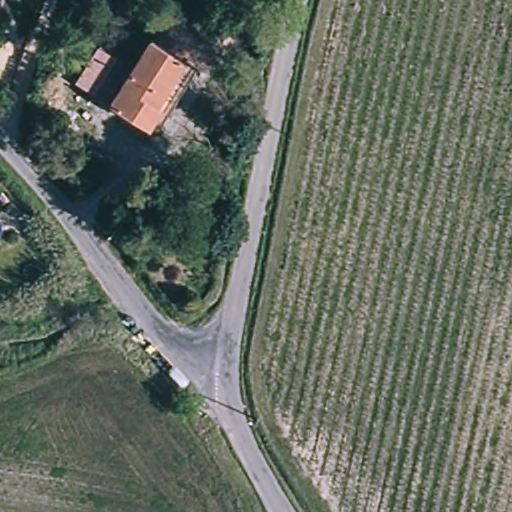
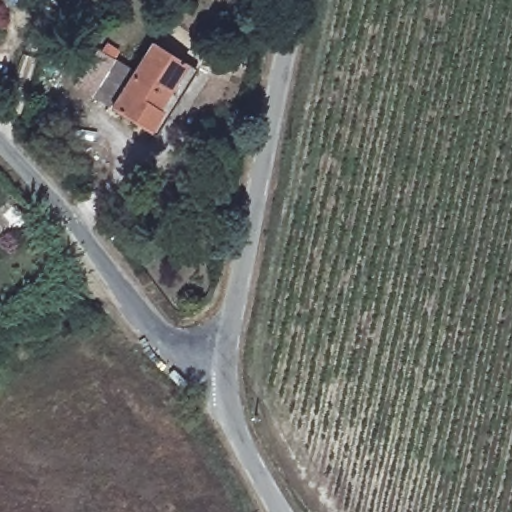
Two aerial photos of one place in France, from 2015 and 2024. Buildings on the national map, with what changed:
unchanged [(149,131),(66,81),(89,43),(128,68),(146,39),(188,67),(167,103),(160,113),(149,131)]

